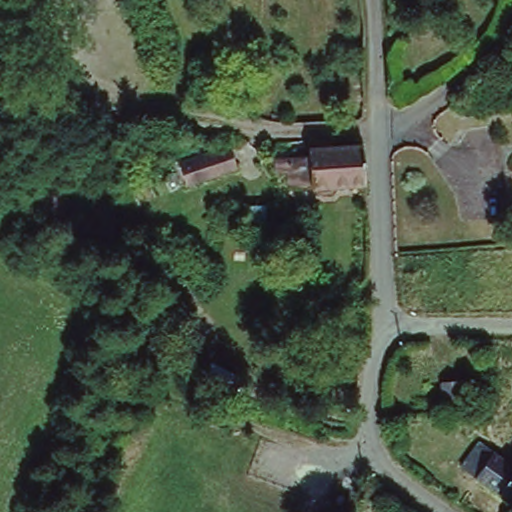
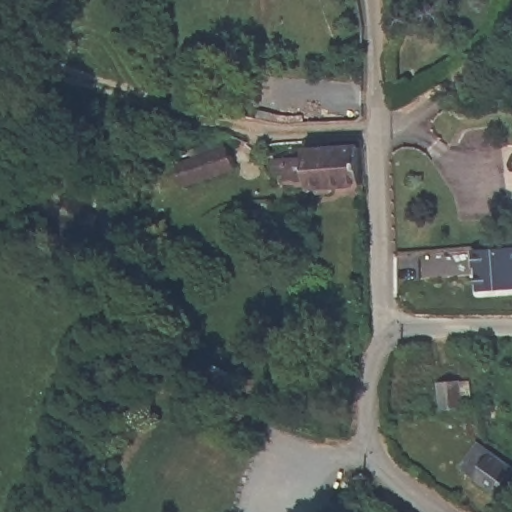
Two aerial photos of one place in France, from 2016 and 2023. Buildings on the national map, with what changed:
unchanged [(215,173),(210,150),(258,138),(263,161),(215,173)]
unchanged [(308,147),(328,145),(329,150),(362,149),(364,186),(331,188),(330,185),(310,186),(288,186),(288,161),(309,160),(308,147)]
new [(478,270),(474,270),(474,249),(512,247),(512,289),(479,291),(478,270)]
unchanged [(447,379),(464,377),(468,404),(450,408),(447,379)]
unchanged [(512,468),(512,498),(506,504),(470,478),(488,451),(512,468)]

